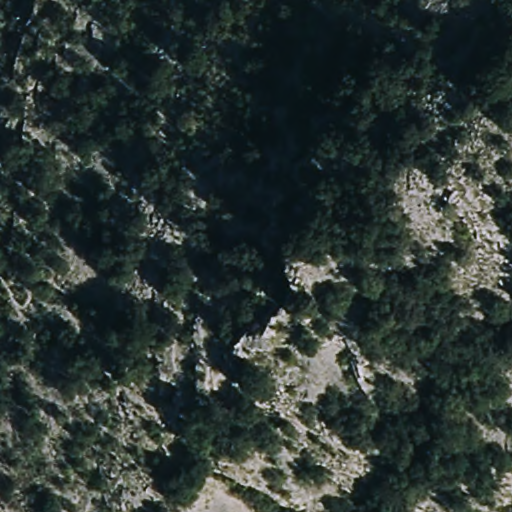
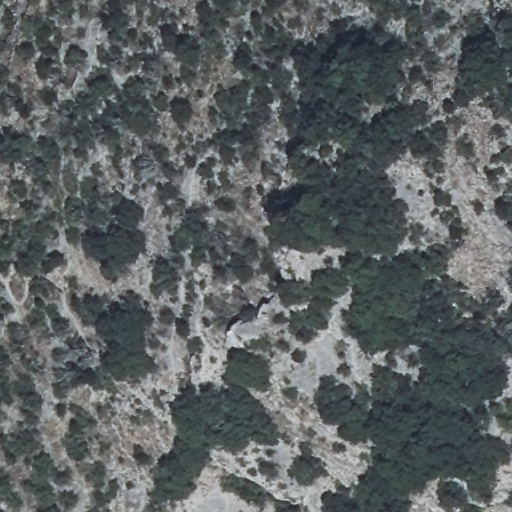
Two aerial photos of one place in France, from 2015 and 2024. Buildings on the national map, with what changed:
[]

